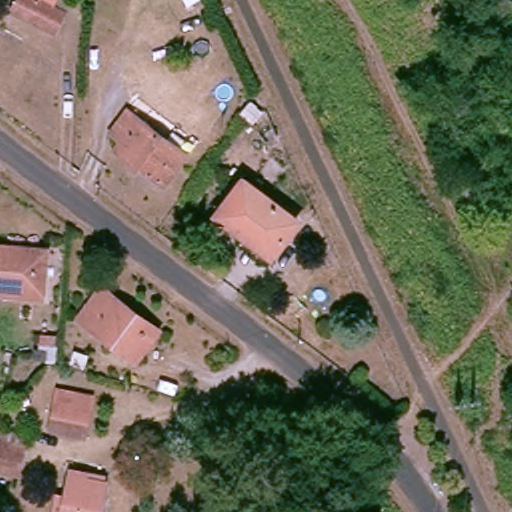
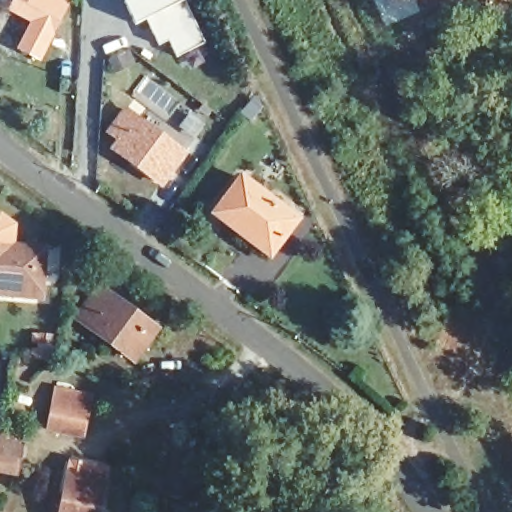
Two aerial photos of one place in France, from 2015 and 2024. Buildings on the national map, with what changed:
unchanged [(7,17),(15,0),(26,0),(29,1),(29,0),(57,0),(52,12),(62,17),(55,35),(7,17)]
new [(177,55),(170,40),(160,45),(146,18),(136,24),(125,1),(128,0),(185,0),(205,42),(177,55)]
new [(391,10),(387,0),(414,0),(391,10)]
unchanged [(170,190),(113,147),(120,137),(107,127),(122,106),(192,160),(170,190)]
unchanged [(271,253),(216,212),(241,180),(295,221),(271,253)]
unchanged [(11,295),(0,294),(0,248),(49,254),(44,304),(10,300),(11,295)]
unchanged [(79,321),(103,290),(159,333),(136,363),(79,321)]
unchanged [(91,399),(84,437),(64,434),(51,432),(58,394),(72,396),(91,399)]
unchanged [(0,469),(0,442),(1,439),(26,444),(21,471),(0,469)]
unchanged [(61,512),(67,471),(87,475),(86,480),(100,482),(96,512),(61,512)]

